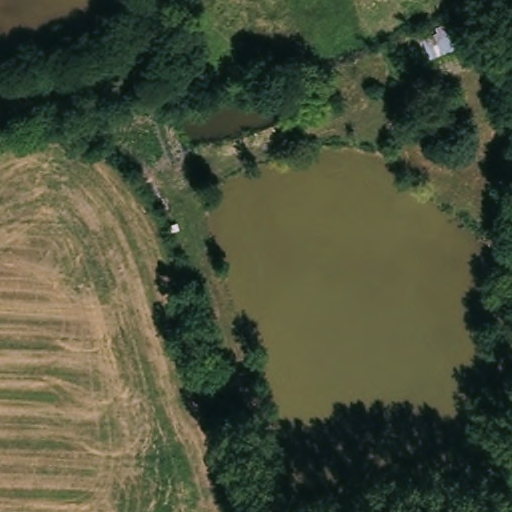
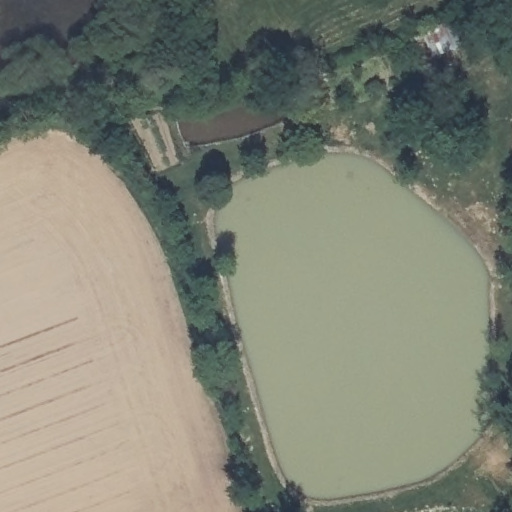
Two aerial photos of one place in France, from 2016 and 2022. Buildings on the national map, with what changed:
unchanged [(453,29),(465,45),(428,62),(420,44),(453,29)]

